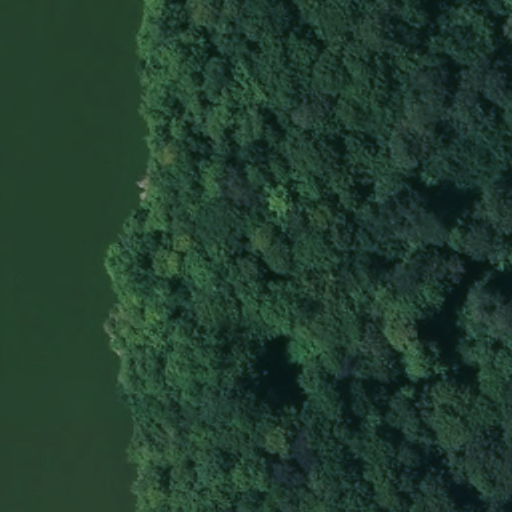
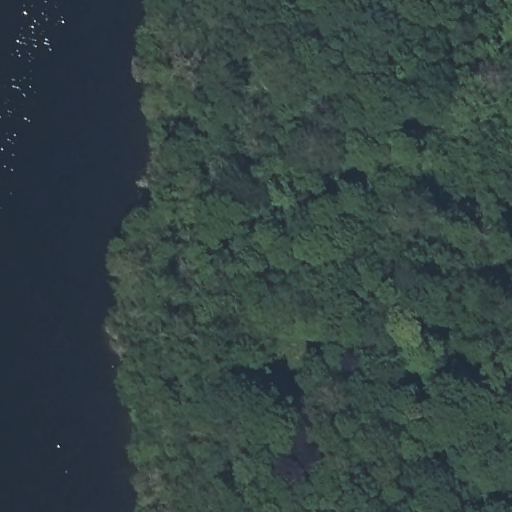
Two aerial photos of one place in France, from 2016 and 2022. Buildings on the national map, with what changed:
unchanged [(87,406),(88,407),(88,411),(87,437),(77,437),(67,436),(56,434),(54,433),(57,402),(62,402),(67,402),(69,403),(75,404),(77,405),(87,406)]

